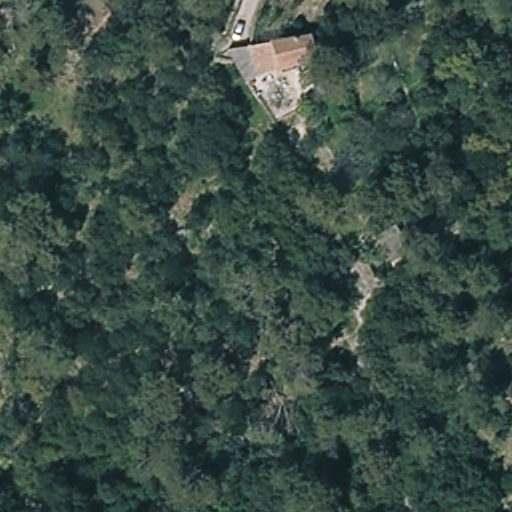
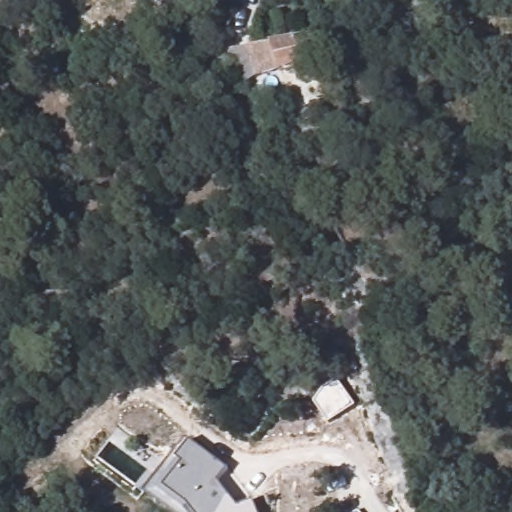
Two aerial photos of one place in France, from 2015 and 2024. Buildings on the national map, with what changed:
unchanged [(310,34),(316,65),(246,82),(243,83),(227,61),(221,50),(237,48),(310,34)]
new [(323,388),(338,379),(356,405),(329,424),(313,402),(323,388)]
new [(175,458),(188,441),(226,469),(218,482),(237,507),(252,500),(257,512),(168,512),(141,492),(169,455),(175,458)]

